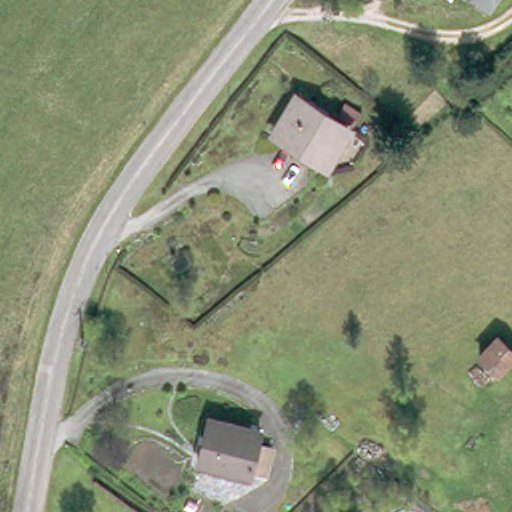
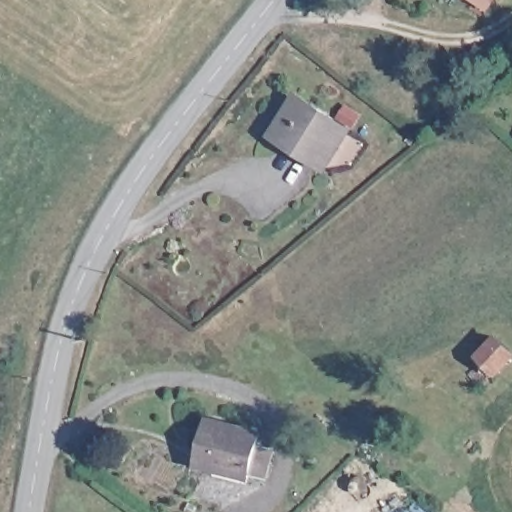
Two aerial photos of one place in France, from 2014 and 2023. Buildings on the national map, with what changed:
unchanged [(469,0),(489,0),(494,4),(488,13),(469,0)]
unchanged [(489,0),(497,0),(494,4),(489,0)]
unchanged [(269,138),(291,102),(342,132),(319,169),(269,138)]
unchanged [(358,117),(351,129),(335,119),(343,107),(358,117)]
unchanged [(512,367),(502,380),(475,362),(497,336),(512,352),(512,367)]
unchanged [(264,438),(261,451),(276,455),(269,483),(253,478),(252,482),(201,467),(213,425),(264,438)]

